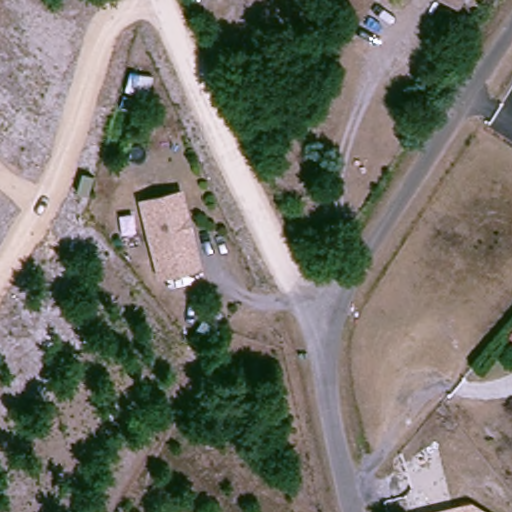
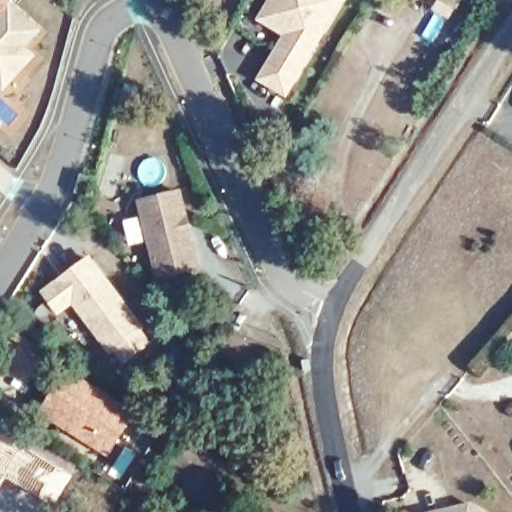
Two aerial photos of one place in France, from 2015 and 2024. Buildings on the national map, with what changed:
new [(0,2),(0,0),(2,0),(0,2)]
new [(2,0),(6,0),(34,24),(7,54),(17,62),(0,81),(0,3),(2,0)]
new [(6,0),(12,0),(10,3),(6,0)]
new [(288,98),(257,82),(283,35),(257,21),(270,0),(347,0),(288,98)]
unchanged [(164,187),(196,257),(159,274),(127,204),(164,187)]
new [(82,268),(140,333),(112,358),(70,312),(57,323),(41,305),(82,268)]
new [(16,327),(44,344),(26,374),(0,358),(0,354),(16,327)]
unchanged [(512,334),(512,341),(508,338),(512,334)]
new [(111,455),(39,414),(65,368),(137,413),(111,455)]
new [(74,474),(55,507),(6,479),(0,488),(0,425),(74,474)]
unchanged [(486,512),(429,512),(470,502),(486,512)]

